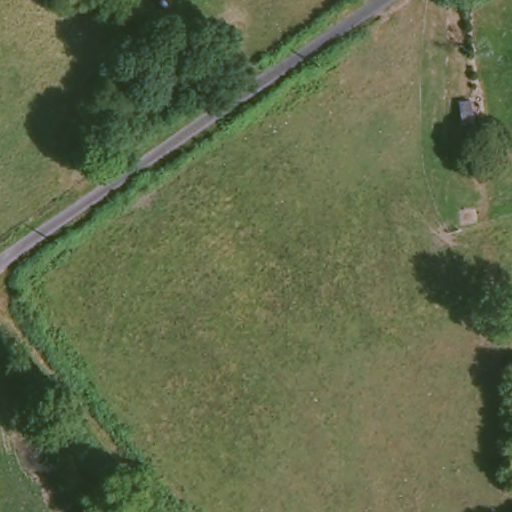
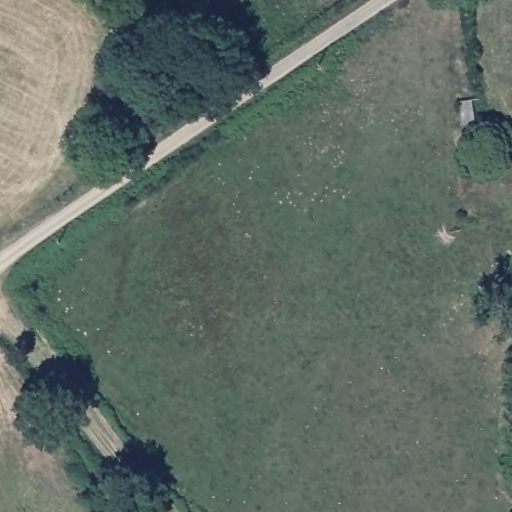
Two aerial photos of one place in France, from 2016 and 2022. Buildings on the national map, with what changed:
[]

